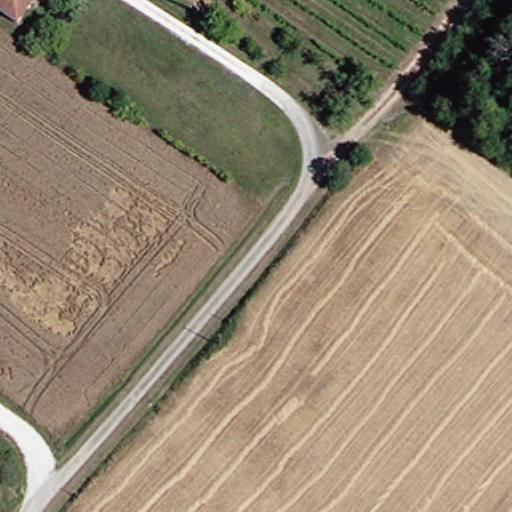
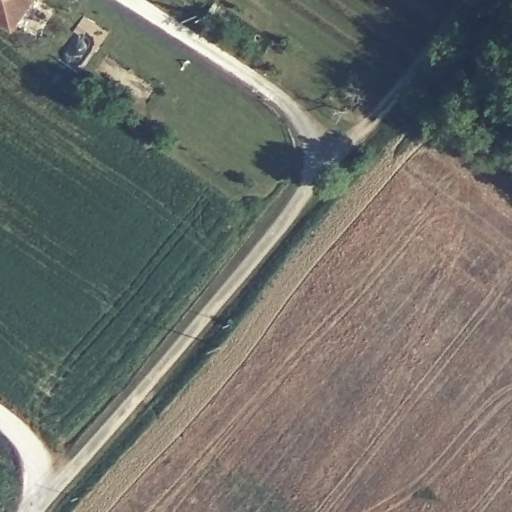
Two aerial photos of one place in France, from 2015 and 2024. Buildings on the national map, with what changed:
unchanged [(5,28),(0,24),(0,0),(23,0),(5,28)]

